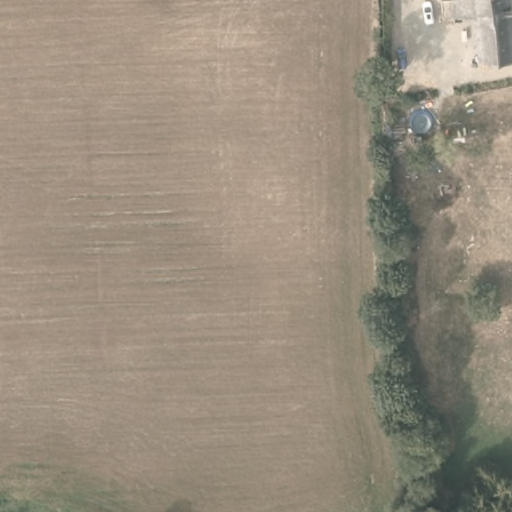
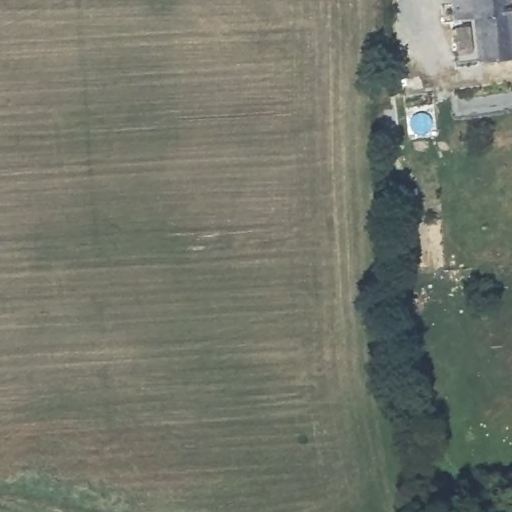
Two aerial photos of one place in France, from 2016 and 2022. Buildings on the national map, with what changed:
unchanged [(512,62),(491,63),(475,65),(473,21),(453,23),(452,0),(508,0),(512,56),(512,62)]

